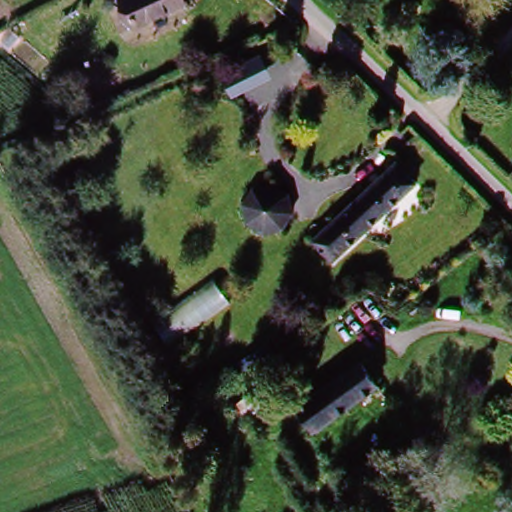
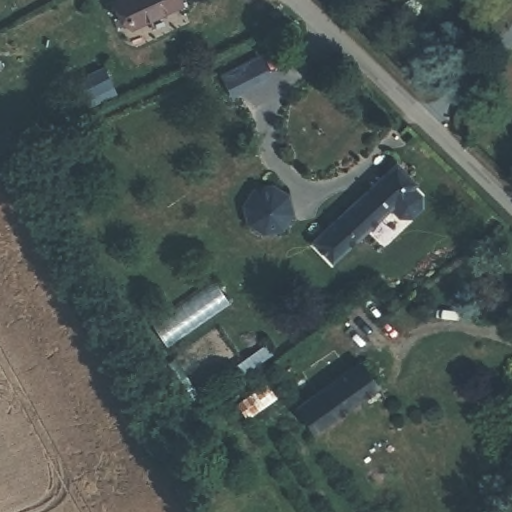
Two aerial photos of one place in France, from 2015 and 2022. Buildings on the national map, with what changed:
unchanged [(59,0),(61,0),(60,1),(59,0)]
unchanged [(180,0),(131,24),(120,0),(180,0)]
unchanged [(261,57),(271,80),(232,98),(223,74),(261,57)]
unchanged [(299,253),(311,242),(396,162),(416,180),(405,190),(329,260),(322,254),(316,248),(305,259),(299,253)]
unchanged [(293,193),(294,213),(281,231),(264,235),(241,226),(238,203),(246,184),(267,183),(293,193)]
unchanged [(211,279),(230,303),(174,339),(160,316),(211,279)]
unchanged [(366,361),(383,385),(318,428),(301,404),(366,361)]

